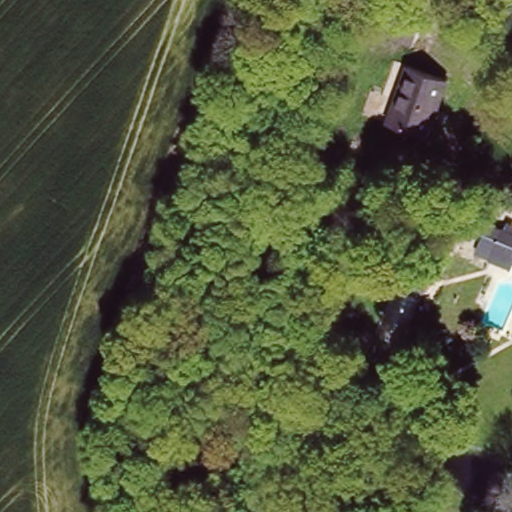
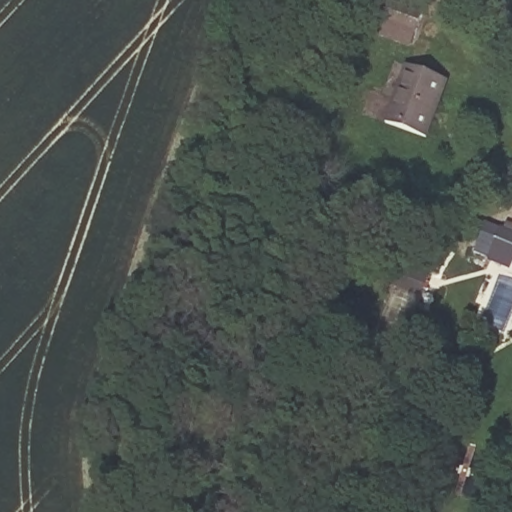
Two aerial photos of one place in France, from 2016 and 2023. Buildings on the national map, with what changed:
unchanged [(442,75),(423,129),(383,115),(403,62),(442,75)]
unchanged [(493,252),(503,226),(512,228),(512,255),(511,258),(493,252)]
unchanged [(416,289),(403,284),(376,273),(383,257),(410,267),(423,272),(416,289)]

